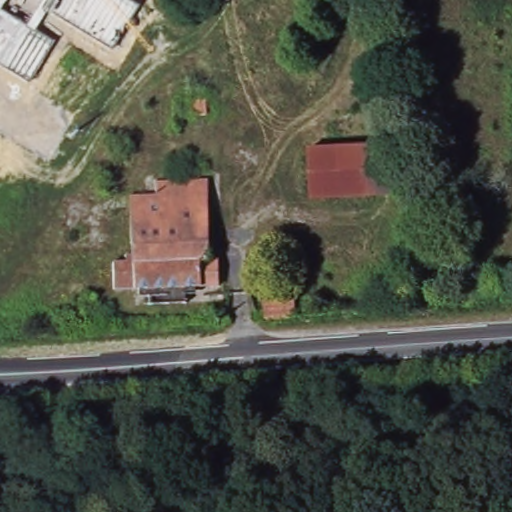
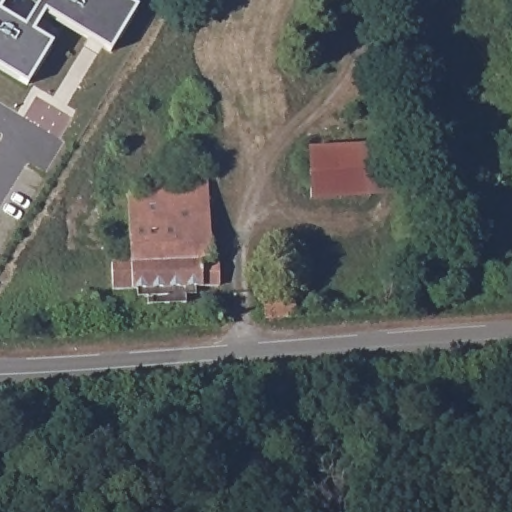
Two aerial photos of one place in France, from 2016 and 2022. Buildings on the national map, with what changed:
new [(6,0),(0,9),(0,0),(6,0)]
new [(110,49),(47,11),(35,31),(52,42),(27,83),(0,67),(0,13),(25,26),(42,0),(125,0),(136,7),(110,49)]
unchanged [(176,97),(205,95),(206,114),(175,114),(176,97)]
unchanged [(307,144),(400,142),(401,192),(309,194),(307,144)]
unchanged [(184,285),(184,293),(145,295),(145,287),(135,287),(134,280),(132,280),(111,281),(110,254),(122,252),(122,247),(129,246),(126,188),(129,188),(151,187),(150,174),(205,171),(209,249),(216,249),(217,276),(194,277),(194,285),(184,285)]
unchanged [(267,295),(270,295),(270,287),(283,285),(285,296),(297,296),(295,317),(267,319),(267,295)]

